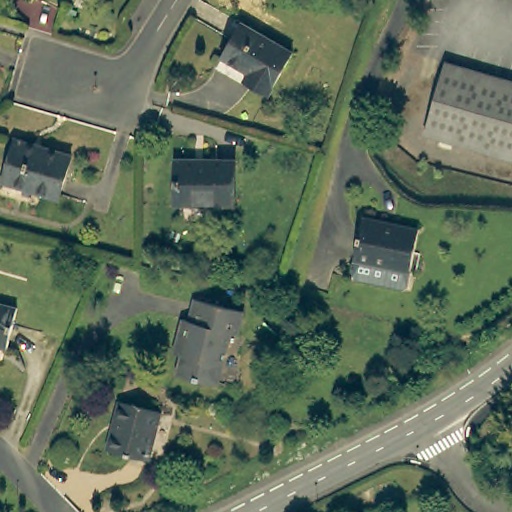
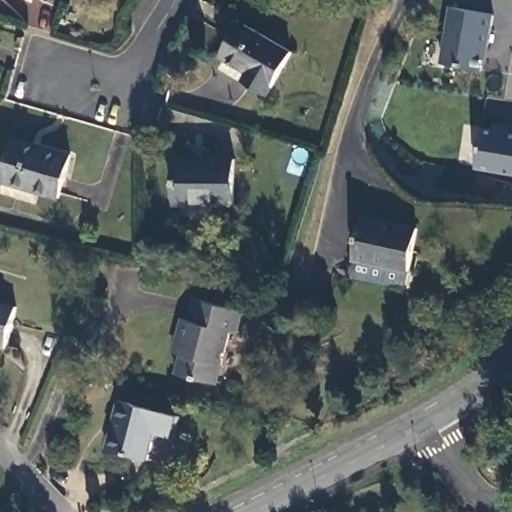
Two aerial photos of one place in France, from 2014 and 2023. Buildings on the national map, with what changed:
new [(486,63),(482,62),(482,72),(441,64),(450,8),(493,15),(486,63)]
unchanged [(246,72),(219,56),(239,23),(290,52),(265,96),(248,86),(241,82),(246,72)]
demolished [(512,161),(421,134),(442,61),(512,82),(512,161)]
new [(482,127),(493,129),(495,124),(512,127),(512,177),(475,170),(482,127)]
unchanged [(70,156),(57,199),(1,182),(14,139),(70,156)]
unchanged [(234,160),(232,205),(173,204),(175,160),(234,160)]
unchanged [(407,271),(405,285),(400,288),(355,278),(352,273),(349,272),(352,260),(361,216),(417,229),(407,271)]
unchanged [(183,338),(187,323),(194,325),(200,303),(246,315),(240,337),(234,336),(220,388),(180,377),(185,359),(178,357),(183,338)]
unchanged [(20,311),(9,351),(0,349),(0,307),(20,311)]
unchanged [(147,463),(106,453),(117,405),(160,415),(147,463)]

